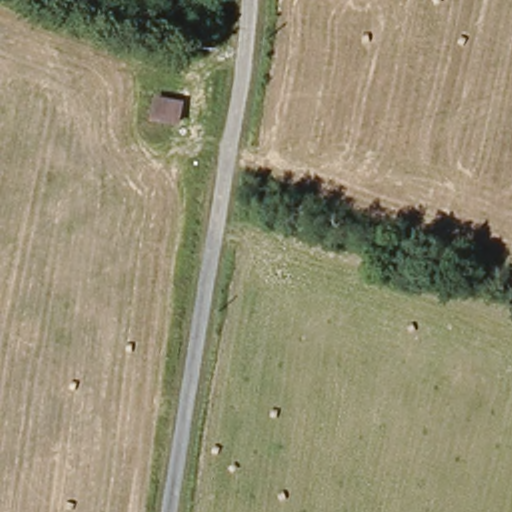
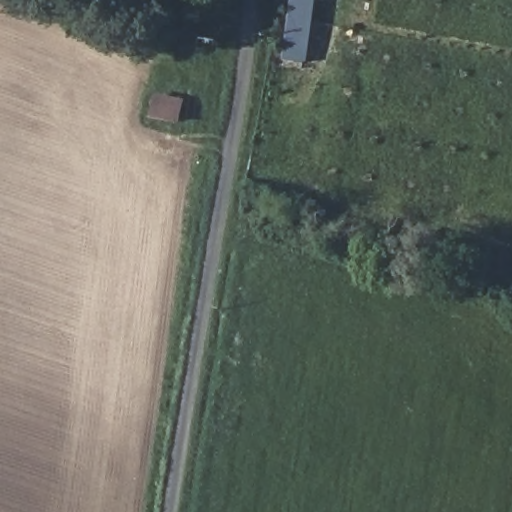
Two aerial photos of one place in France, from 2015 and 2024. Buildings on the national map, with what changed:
new [(292,0),(312,0),(303,61),(283,58),(292,0)]
unchanged [(183,120),(156,117),(159,95),(186,99),(183,120)]

